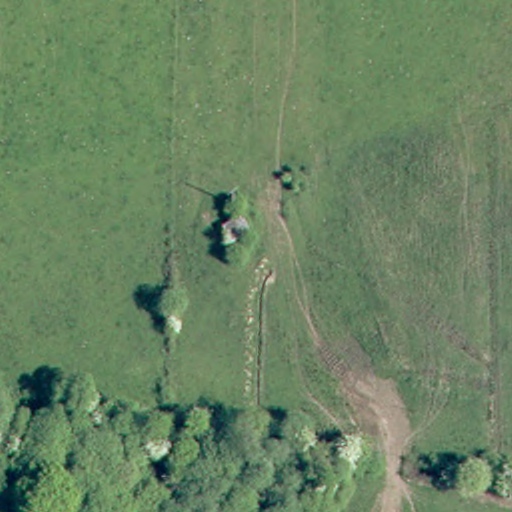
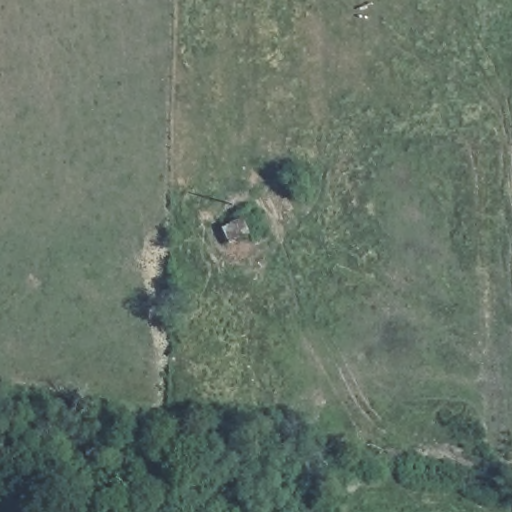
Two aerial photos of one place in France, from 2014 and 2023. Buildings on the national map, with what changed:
unchanged [(248,214),(255,230),(235,239),(228,223),(248,214)]

